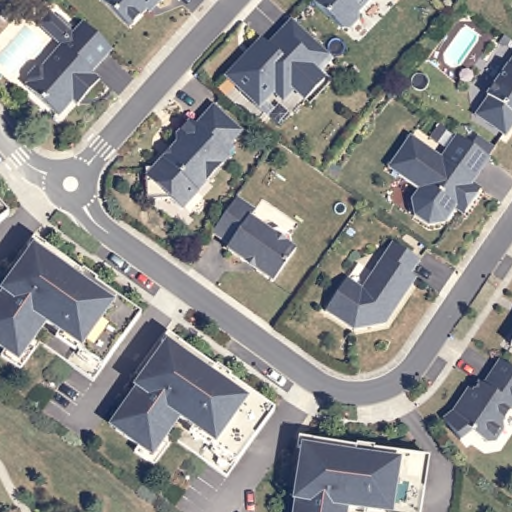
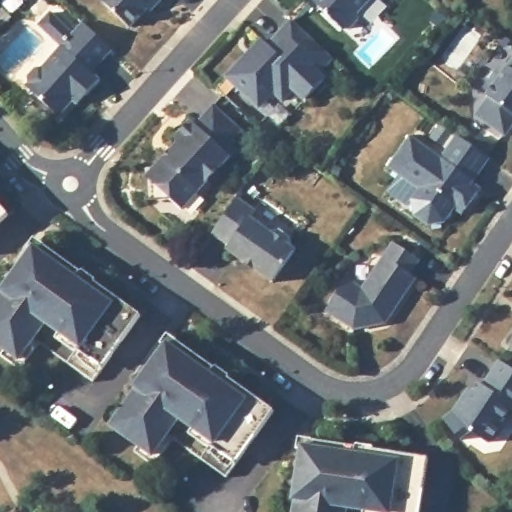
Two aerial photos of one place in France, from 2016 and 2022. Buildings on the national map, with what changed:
unchanged [(157,4),(154,1),(130,27),(101,0),(161,0),(157,4)]
unchanged [(357,12),(358,19),(349,28),(342,29),(312,0),(369,0),(357,12)]
unchanged [(76,100),(62,115),(29,84),(32,82),(31,75),(40,66),(46,66),(66,46),(43,24),(55,12),(77,33),(88,22),(89,23),(117,50),(96,72),(103,80),(89,95),(81,104),(76,100)]
unchanged [(256,44),(263,51),(277,36),(312,68),(307,73),(319,83),(301,103),(290,93),(278,105),(268,96),(257,109),(241,94),(237,97),(222,82),(256,44)]
unchanged [(510,135),(481,115),(493,97),(492,95),(512,67),(512,133),(510,135)]
unchanged [(172,198),(150,199),(147,168),(156,167),(165,157),(167,159),(174,151),(172,149),(179,142),(177,141),(177,135),(191,120),(196,125),(213,105),(241,130),(225,149),(232,155),(184,208),(172,198)]
unchanged [(454,203),(444,217),(428,220),(413,210),(411,194),(418,183),(388,162),(410,130),(447,157),(453,149),(447,144),(457,130),(468,138),(490,153),(472,178),(480,183),(470,198),(462,209),(454,203)]
unchanged [(260,205),(255,212),(274,226),(285,224),(295,232),(297,242),(301,245),(277,277),(231,244),(234,240),(217,228),(242,192),(260,205)]
unchanged [(0,218),(0,211),(4,214),(0,218)]
unchanged [(351,271),(366,282),(398,236),(424,255),(415,268),(420,272),(388,317),(357,323),(328,303),(351,271)]
unchanged [(136,315),(97,368),(72,350),(75,346),(41,322),(14,359),(0,350),(0,286),(32,241),(136,315)]
unchanged [(121,410),(137,387),(136,386),(171,336),(275,410),(236,464),(211,446),(214,442),(180,418),(152,455),(116,429),(110,425),(121,410)]
unchanged [(512,366),(512,412),(506,420),(507,427),(498,441),(492,442),(475,431),(464,439),(447,418),(457,411),(467,395),(472,398),(483,382),(487,384),(503,360),(512,366)]
unchanged [(293,500),(302,439),(427,458),(419,512),(374,512),(347,508),(346,512),(293,512),(295,500),(293,500)]

